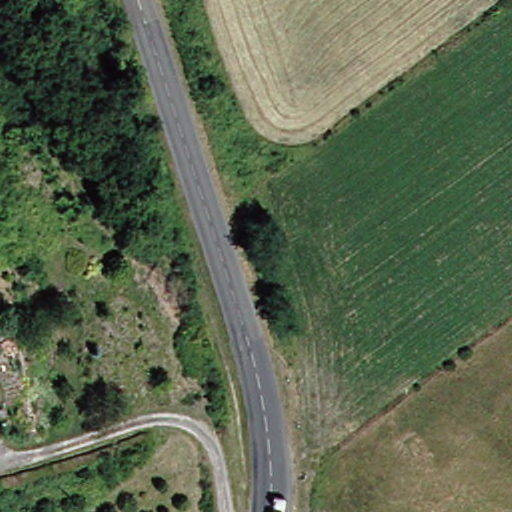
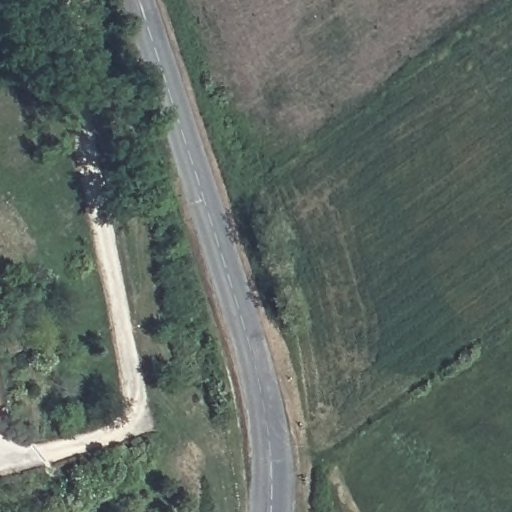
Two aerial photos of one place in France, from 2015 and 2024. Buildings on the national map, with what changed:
unchanged [(0,404),(0,381),(5,402),(0,404)]

